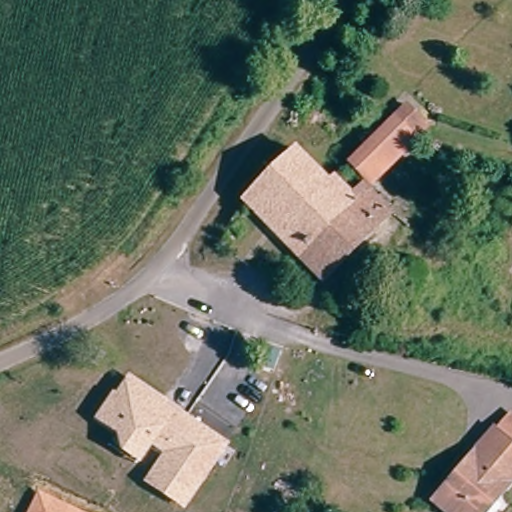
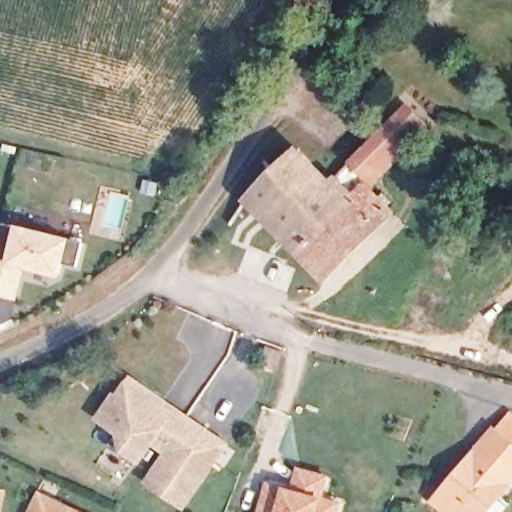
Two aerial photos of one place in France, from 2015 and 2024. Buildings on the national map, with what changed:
unchanged [(368,176),(364,179),(350,163),(382,132),(395,118),(408,106),(429,128),(417,141),(374,184),(368,176)]
unchanged [(393,213),(324,281),(300,257),(282,238),(245,201),(297,149),(329,181),(334,175),(347,188),(353,194),(364,184),(373,192),(379,200),(384,205),(389,210),(393,213)]
new [(16,224),(72,238),(63,278),(26,269),(19,301),(0,296),(0,241),(4,224),(15,229),(16,224)]
unchanged [(110,444),(120,430),(102,418),(118,396),(119,397),(132,379),(164,402),(163,405),(172,411),(173,408),(200,428),(199,431),(212,440),(215,459),(184,505),(149,481),(169,451),(153,440),(140,458),(137,462),(110,444)]
unchanged [(467,463),(476,453),(494,431),(498,433),(512,416),(512,417),(512,484),(501,496),(488,512),(447,512),(434,501),(467,463)]
new [(292,488),(296,466),(331,476),(325,499),(343,503),(340,512),(259,512),(267,481),(284,486),(292,488)]
new [(1,512),(0,512),(0,489),(4,490),(1,512)]
unchanged [(28,512),(38,491),(83,512),(28,512)]

